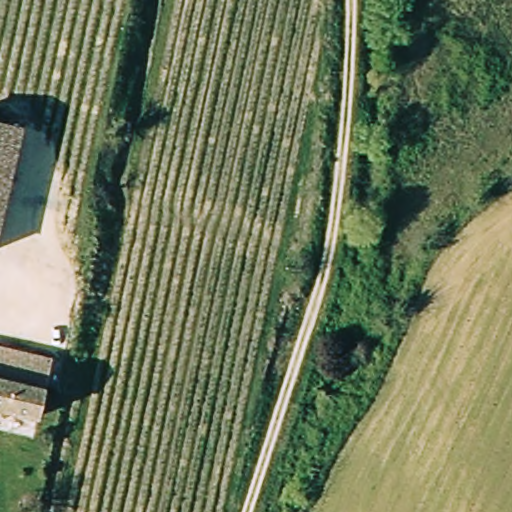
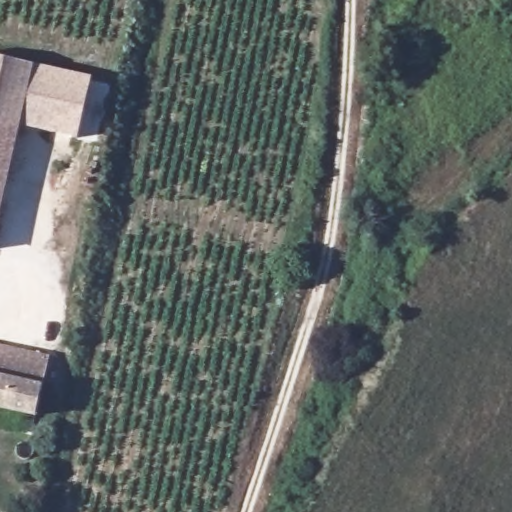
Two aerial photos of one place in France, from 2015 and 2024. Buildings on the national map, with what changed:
new [(19,122),(0,117),(0,59),(35,67),(19,122)]
new [(78,140),(18,126),(19,122),(35,67),(92,79),(78,140)]
unchanged [(0,195),(0,117),(19,122),(0,195)]
unchanged [(38,415),(0,405),(0,348),(52,361),(38,415)]

